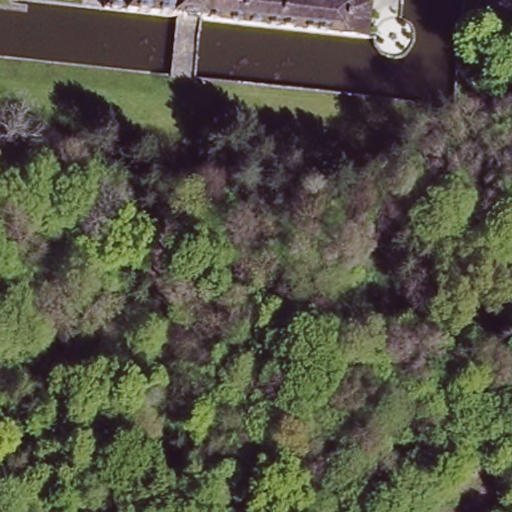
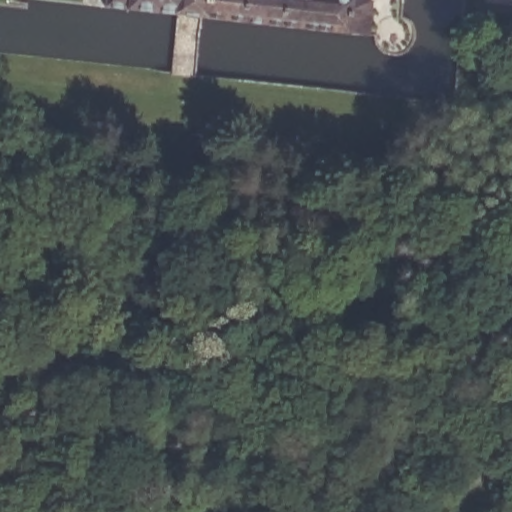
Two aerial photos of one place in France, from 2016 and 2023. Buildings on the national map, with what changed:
unchanged [(366,34),(100,10),(101,0),(370,0),(366,34)]

